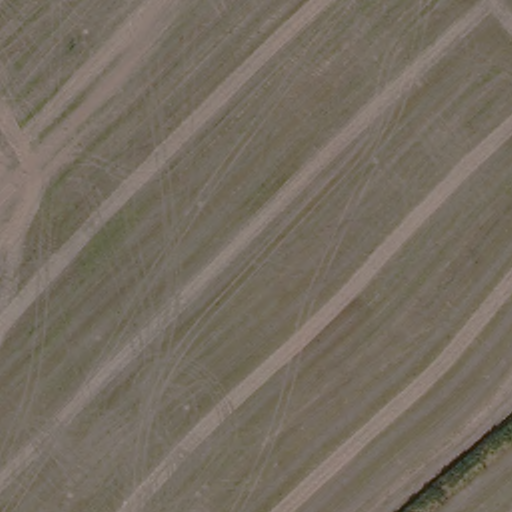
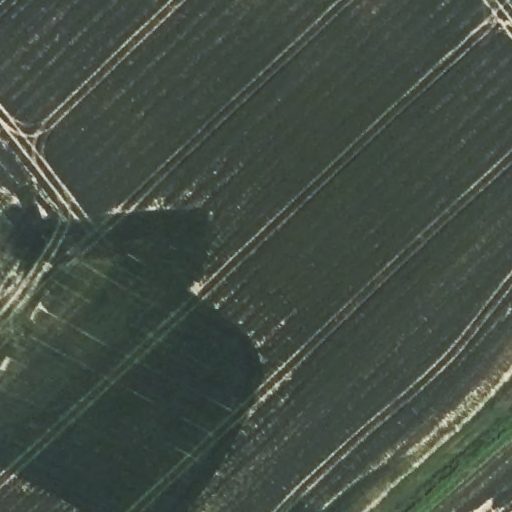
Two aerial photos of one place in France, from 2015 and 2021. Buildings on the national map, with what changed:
[]

